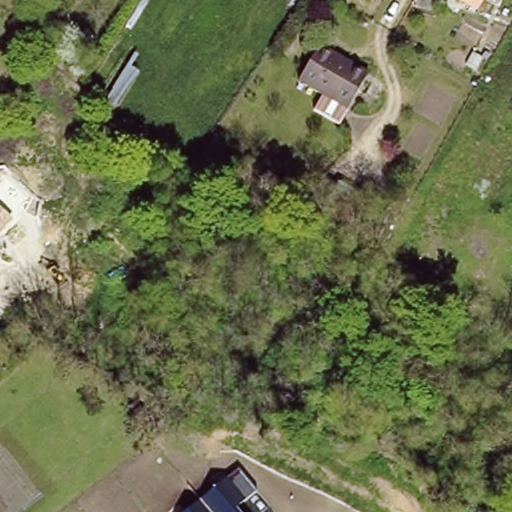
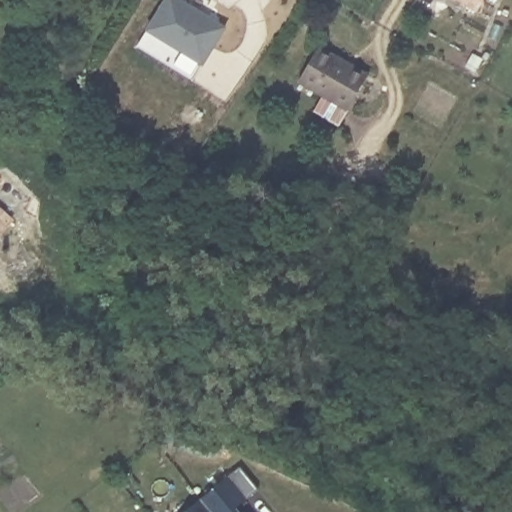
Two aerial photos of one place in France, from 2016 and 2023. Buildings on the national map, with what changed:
new [(203,64),(192,82),(135,48),(145,30),(164,0),(184,0),(227,25),(203,64)]
unchanged [(298,80),(321,45),(350,64),(368,77),(365,82),(345,112),(298,80)]
new [(0,231),(0,210),(10,219),(0,231)]
unchanged [(256,488),(236,504),(242,512),(183,512),(238,466),(256,488)]

